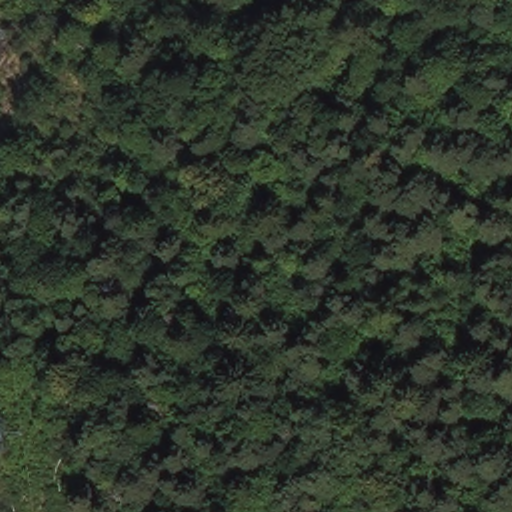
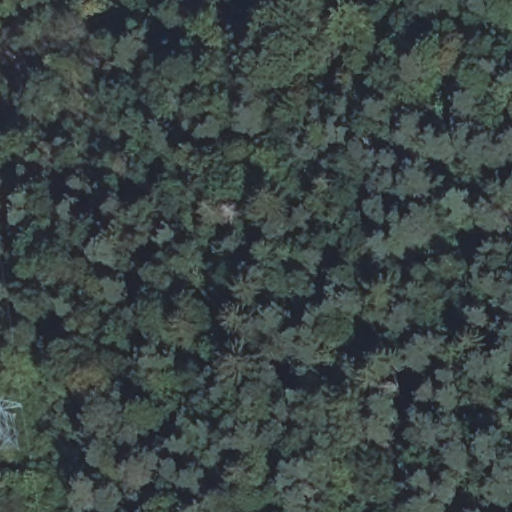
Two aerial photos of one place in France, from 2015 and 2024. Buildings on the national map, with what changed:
[]

